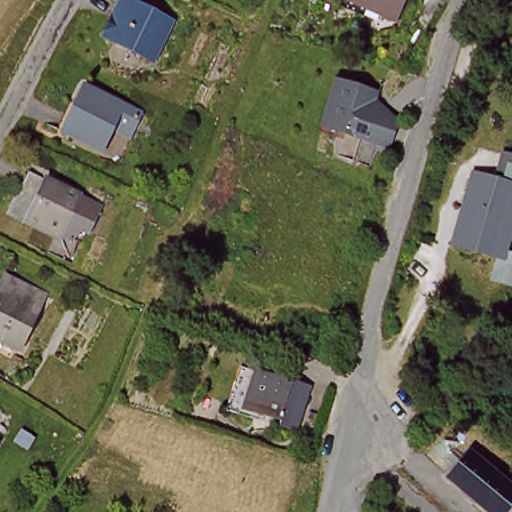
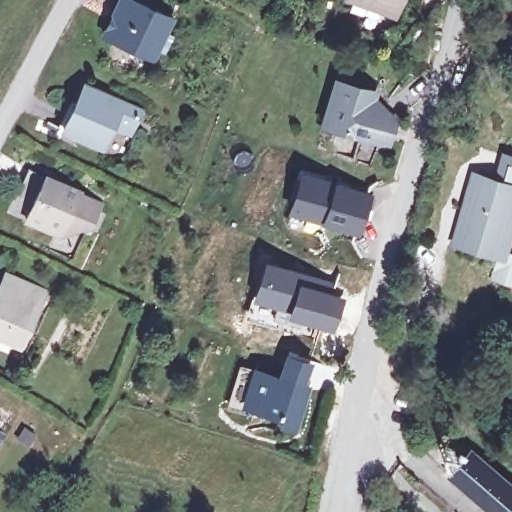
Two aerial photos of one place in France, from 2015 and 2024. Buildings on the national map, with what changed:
unchanged [(125,0),(131,0),(171,20),(153,58),(108,35),(125,0)]
unchanged [(398,17),(360,0),(405,0),(398,17)]
unchanged [(88,80),(149,107),(124,156),(63,129),(88,80)]
unchanged [(343,86),(374,98),(367,118),(393,128),(384,150),(328,129),(343,86)]
unchanged [(497,253),(453,240),(473,171),(499,180),(504,161),(512,163),(512,278),(492,272),(497,253)]
unchanged [(41,190),(25,182),(33,167),(82,192),(80,194),(101,205),(89,230),(83,226),(61,234),(29,217),(41,190)]
new [(374,195),(361,236),(286,210),(301,169),(374,195)]
new [(265,258),(333,283),(331,289),(344,294),(334,332),(287,316),(289,311),(251,300),(265,258)]
unchanged [(20,270),(56,286),(31,338),(0,323),(0,313),(20,270)]
unchanged [(286,424),(288,418),(251,408),(262,370),(289,378),(316,386),(312,397),(303,428),(286,424)]
unchanged [(512,487),(512,508),(509,512),(494,512),(451,477),(459,468),(472,453),(512,487)]

